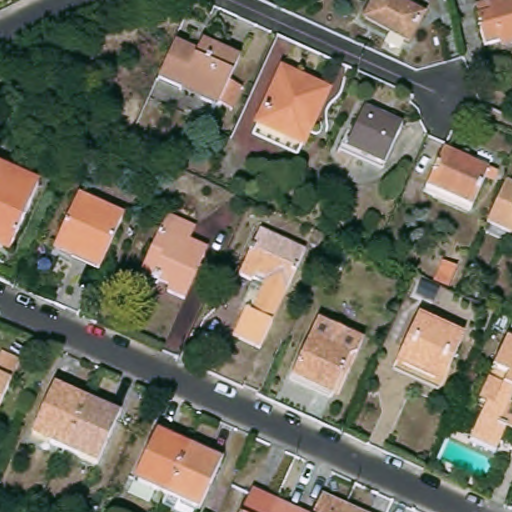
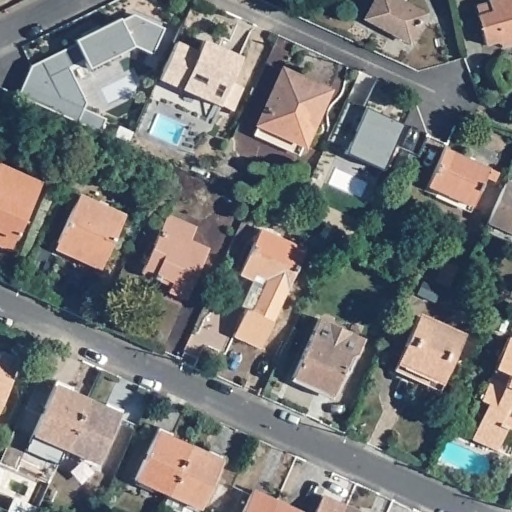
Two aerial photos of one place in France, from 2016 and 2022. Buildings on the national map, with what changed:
unchanged [(423,14),(408,41),(364,19),(374,0),(395,0),(423,14)]
unchanged [(487,0),(512,0),(512,38),(485,45),(473,4),(487,0)]
new [(30,66),(75,43),(73,40),(118,18),(119,21),(133,14),(164,29),(151,54),(134,46),(87,69),(83,60),(68,68),(85,102),(82,109),(104,119),(98,132),(16,96),(30,66)]
unchanged [(225,112),(212,106),(154,80),(171,41),(192,50),(196,39),(234,56),(224,79),(238,85),(225,112)]
unchanged [(328,96),(303,151),(255,130),(280,74),(328,96)]
unchanged [(397,129),(379,168),(342,152),(359,112),(397,129)]
unchanged [(488,173),(471,212),(425,192),(443,153),(488,173)]
unchanged [(4,254),(0,252),(0,176),(32,190),(4,254)]
unchanged [(118,223),(96,273),(50,253),(72,204),(118,223)]
unchanged [(499,236),(512,209),(512,242),(499,236)]
unchanged [(194,226),(189,239),(207,247),(184,300),(165,292),(169,286),(140,273),(166,214),(194,226)]
unchanged [(259,233),(303,252),(259,353),(232,340),(244,314),(249,316),(261,290),(252,285),(238,278),(259,233)]
unchanged [(449,372),(444,369),(437,386),(401,370),(409,354),(403,351),(389,345),(403,314),(416,320),(462,340),(449,372)]
unchanged [(312,321),(358,342),(352,355),(346,358),(325,403),(284,384),(312,321)]
unchanged [(512,346),(512,430),(509,436),(501,432),(492,455),(464,443),(476,420),(483,423),(488,410),(474,404),(502,341),(512,346)]
unchanged [(0,394),(0,357),(14,363),(0,394)]
unchanged [(71,390),(70,395),(101,409),(104,405),(119,412),(95,468),(30,439),(54,383),(71,390)]
unchanged [(160,499),(128,484),(153,429),(169,436),(166,440),(199,456),(202,451),(218,458),(194,512),(189,512),(160,512),(155,510),(160,499)]
unchanged [(292,512),(242,512),(251,493),(292,512)]
unchanged [(353,512),(315,512),(322,497),(353,512)]

